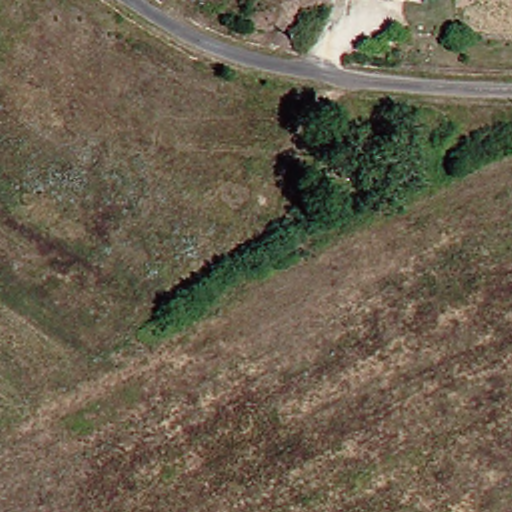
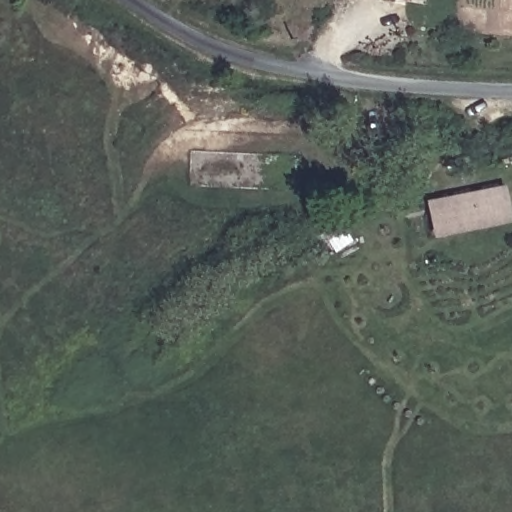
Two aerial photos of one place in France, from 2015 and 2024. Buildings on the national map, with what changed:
unchanged [(364,4),(347,2),(347,0),(364,0),(364,4)]
unchanged [(407,1),(400,1),(379,0),(408,0),(407,1)]
new [(505,186),(512,223),(432,238),(425,201),(505,186)]

